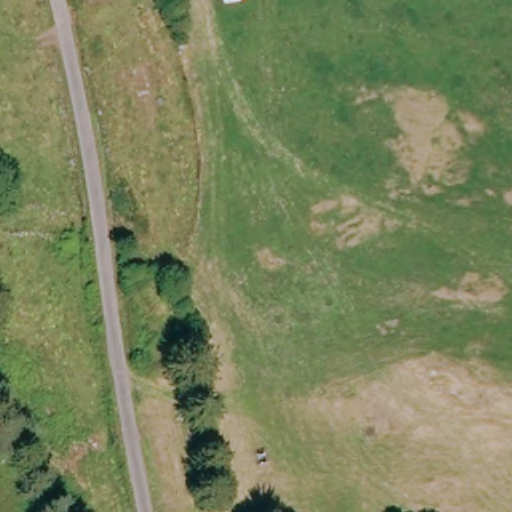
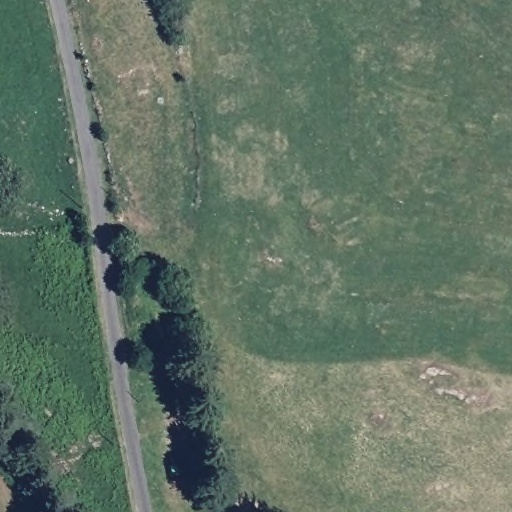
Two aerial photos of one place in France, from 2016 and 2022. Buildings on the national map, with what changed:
[]

